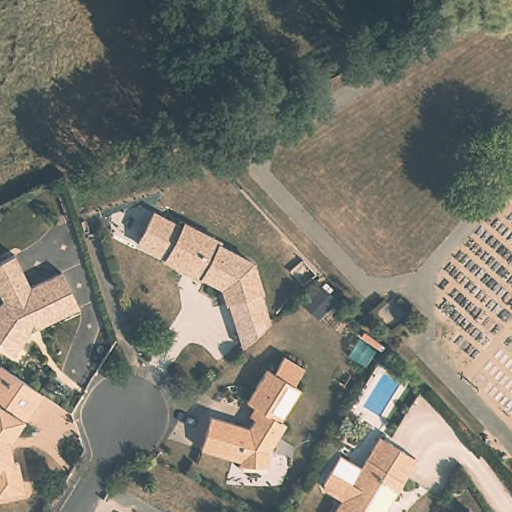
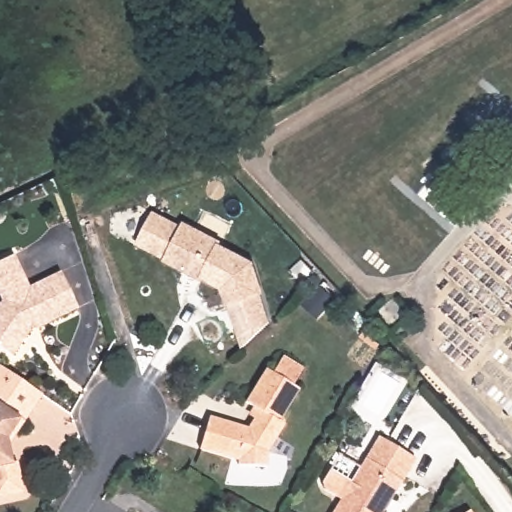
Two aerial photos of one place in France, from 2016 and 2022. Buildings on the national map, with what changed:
unchanged [(255,322),(238,320),(234,307),(231,308),(227,293),(207,283),(207,285),(170,266),(171,264),(142,249),(150,234),(158,218),(187,233),(189,229),(226,247),(224,251),(257,267),(266,297),(264,298),(267,311),(255,322)]
unchanged [(0,317),(8,306),(0,291),(0,269),(19,260),(35,292),(66,277),(84,313),(44,332),(42,329),(34,333),(36,337),(35,337),(18,362),(0,350),(0,317)]
unchanged [(320,286),(333,300),(315,317),(302,303),(320,286)]
unchanged [(205,450),(215,417),(254,429),(265,411),(251,403),(272,370),(278,373),(288,357),(308,369),(298,386),(305,390),(286,422),(290,425),(273,452),(273,467),(244,466),(244,461),(205,450)]
unchanged [(48,400),(29,428),(14,450),(18,468),(23,467),(29,497),(0,503),(0,377),(5,371),(48,400)]
unchanged [(416,460),(384,512),(334,512),(341,500),(325,490),(323,482),(330,471),(340,455),(361,468),(380,437),(416,460)]
unchanged [(470,511),(471,512),(467,512),(470,511)]

